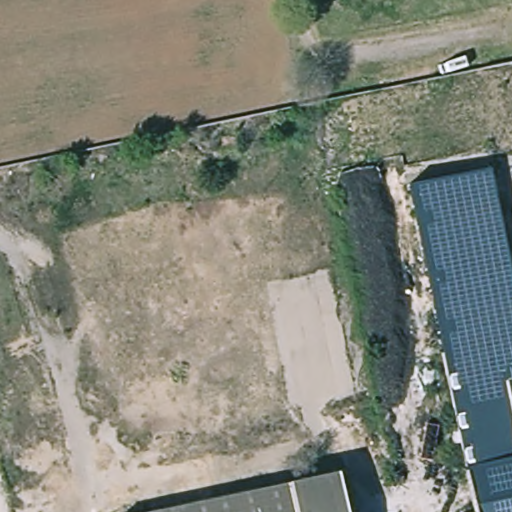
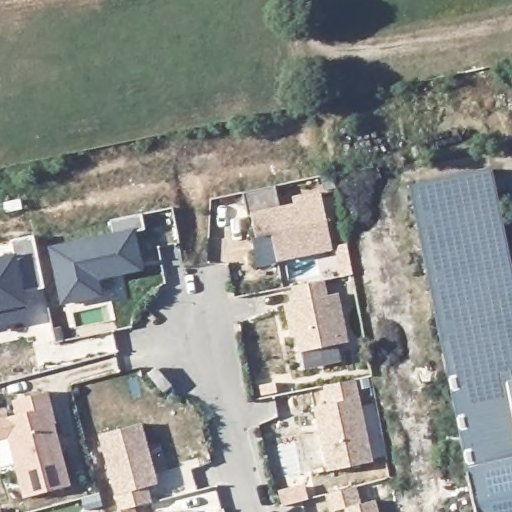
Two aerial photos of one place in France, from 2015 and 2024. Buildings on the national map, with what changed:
unchanged [(424,183),(489,169),(509,263),(444,277),(424,183)]
unchanged [(460,352),(442,356),(407,187),(424,183),(444,277),(460,352)]
new [(278,207),(293,204),(291,197),(319,191),(331,250),(276,263),(276,264),(257,268),(249,238),(254,237),(250,218),(246,219),(241,193),(273,186),(278,207)]
new [(130,269),(92,277),(95,294),(57,302),(47,247),(108,234),(105,219),(137,213),(140,229),(128,231),(134,257),(136,268),(130,269)]
new [(9,254),(6,239),(28,235),(39,287),(17,291),(20,304),(0,308),(0,255),(9,254)]
unchanged [(444,277),(509,263),(512,278),(512,397),(472,406),(460,352),(444,277)]
new [(288,337),(284,339),(277,305),(288,303),(284,287),(314,281),(317,297),(328,295),(338,344),(292,353),(288,337)]
new [(20,304),(23,318),(0,323),(0,308),(20,304)]
new [(307,409),(321,406),(317,387),(347,381),(364,464),(320,473),(307,409)]
new [(52,424),(50,424),(65,486),(21,498),(5,436),(0,437),(0,417),(13,414),(10,400),(43,391),(52,424)]
unchanged [(472,406),(512,397),(512,453),(464,464),(452,410),(472,406)]
new [(95,435),(136,424),(152,485),(142,488),(146,503),(129,508),(115,511),(95,435)]
unchanged [(512,512),(474,512),(464,464),(512,453),(512,512)]
demolished [(340,476),(348,512),(154,512),(340,476)]
new [(366,484),(373,512),(342,512),(341,509),(331,512),(327,512),(322,495),(366,484)]
new [(115,511),(129,508),(131,512),(111,512),(115,511)]
new [(99,511),(100,512),(96,512),(99,511)]
new [(176,511),(177,512),(173,512),(176,511)]

